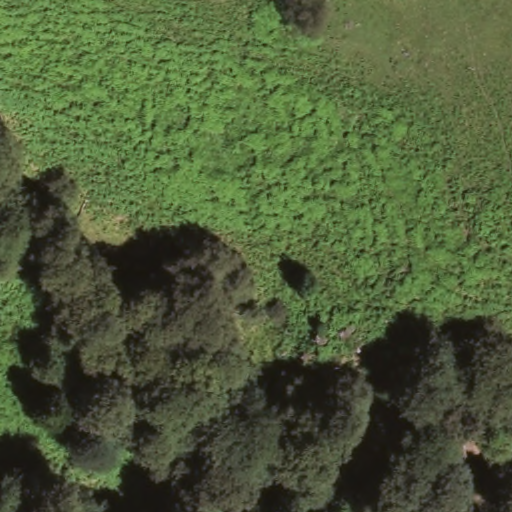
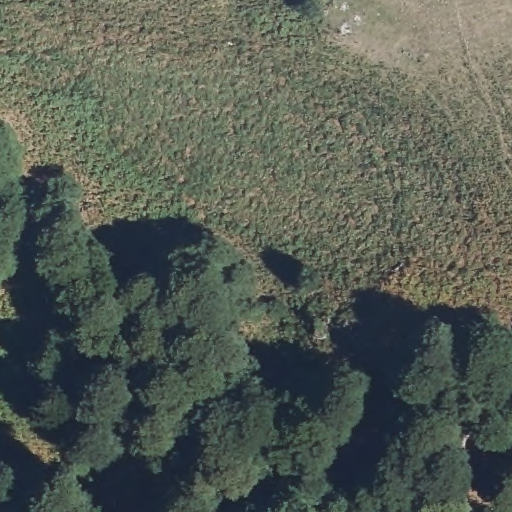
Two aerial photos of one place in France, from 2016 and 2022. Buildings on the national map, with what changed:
unchanged [(325,1),(322,0),(326,0),(325,1)]

